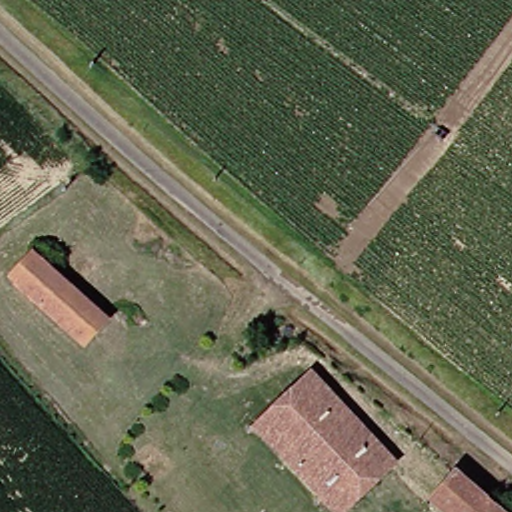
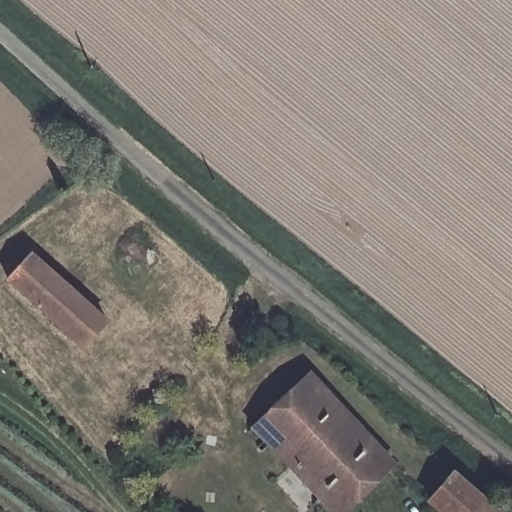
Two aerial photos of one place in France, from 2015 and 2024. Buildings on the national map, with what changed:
unchanged [(34,256),(110,317),(87,345),(10,282),(34,256)]
unchanged [(398,461),(347,512),(334,512),(255,430),(310,373),(398,461)]
unchanged [(493,512),(440,512),(429,503),(450,480),(493,512)]

